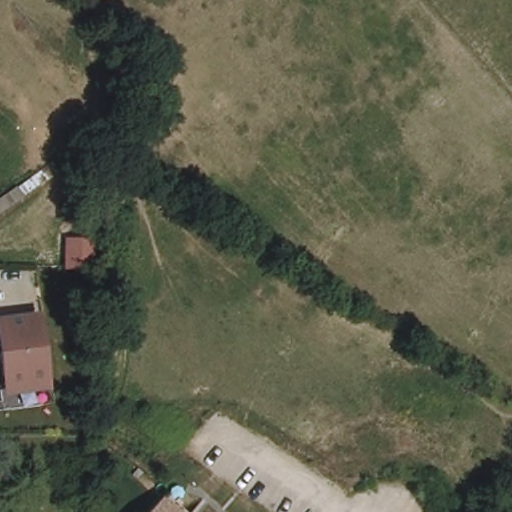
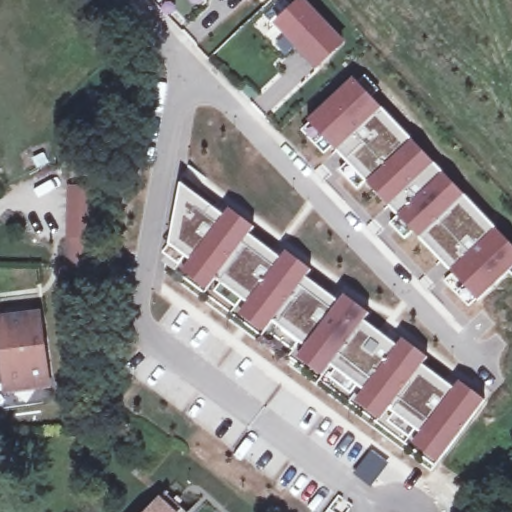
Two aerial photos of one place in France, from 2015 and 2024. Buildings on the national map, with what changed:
new [(341,43),(317,67),(276,24),(300,1),(341,43)]
new [(387,205),(366,182),(307,121),(352,78),(512,246),(512,266),(477,299),(440,260),(420,239),(387,205)]
new [(486,400),(432,472),(165,272),(182,183),(216,209),(225,216),(231,209),(255,227),(250,235),(273,252),(282,258),(287,251),(311,268),(305,276),(332,295),(340,302),(346,295),(377,317),(371,325),(380,331),(375,337),(382,342),(374,354),(384,362),(402,337),(427,356),(422,363),(445,380),(455,387),(459,380),(486,400)]
new [(71,189),(97,189),(95,241),(95,266),(70,266),(70,241),(71,189)]
new [(509,268),(512,265),(512,271),(509,268)]
unchanged [(47,387),(0,392),(0,386),(0,310),(40,305),(47,387)]
new [(385,324),(402,337),(384,362),(374,354),(382,342),(375,337),(385,324)]
new [(357,473),(372,452),(385,463),(375,477),(377,478),(372,485),(357,473)]
unchanged [(175,512),(140,512),(156,494),(175,512)]

